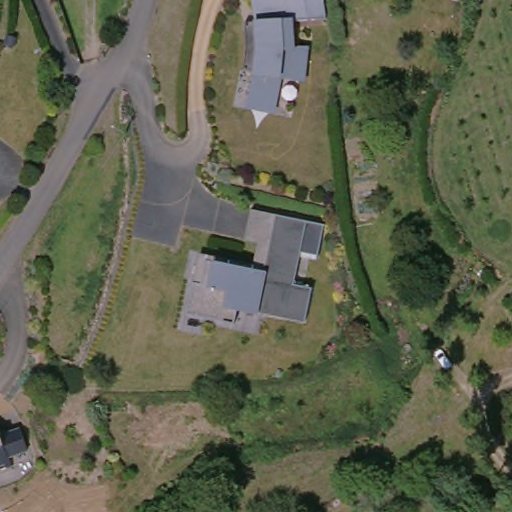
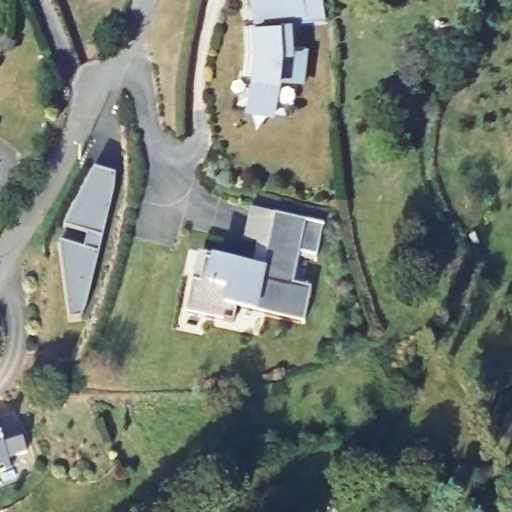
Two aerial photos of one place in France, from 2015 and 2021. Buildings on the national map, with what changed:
unchanged [(333,21),(299,21),(299,48),(312,48),(308,79),(285,76),(278,113),(251,107),(260,73),(249,71),(251,47),(251,23),(263,22),(260,0),(330,0),(333,21)]
new [(89,234),(65,227),(89,182),(96,169),(117,174),(116,189),(87,307),(82,317),(70,318),(61,242),(85,248),(89,234)]
unchanged [(314,289),(306,323),(239,307),(236,323),(189,312),(196,281),(203,282),(208,259),(256,270),(254,275),(264,278),(278,216),(309,223),(295,285),(314,289)]
unchanged [(62,358),(71,334),(86,340),(82,349),(76,363),(62,358)]
unchanged [(10,466),(0,470),(0,443),(8,461),(10,466)]

